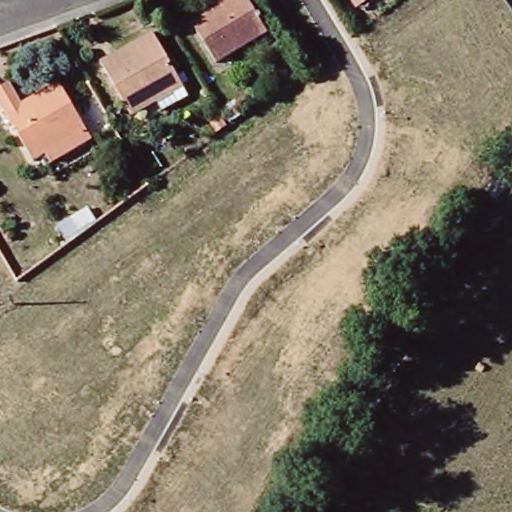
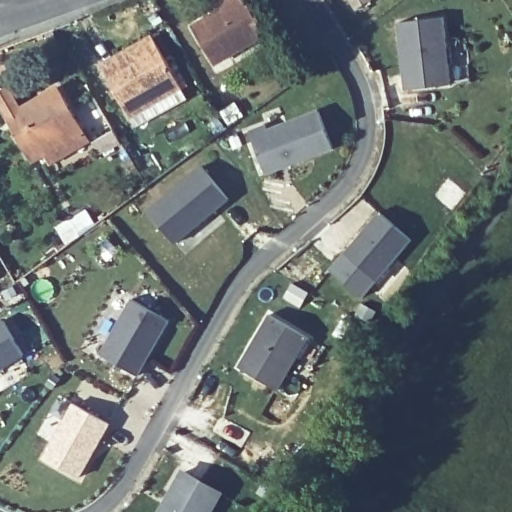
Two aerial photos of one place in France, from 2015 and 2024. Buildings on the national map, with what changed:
unchanged [(219,66),(192,26),(221,10),(216,0),(249,0),(269,32),(219,66)]
unchanged [(355,0),(369,0),(359,6),(355,0)]
new [(400,22),(445,18),(452,84),(408,89),(400,22)]
unchanged [(131,115),(100,65),(148,35),(187,94),(161,112),(154,101),(131,115)]
unchanged [(11,84),(25,105),(56,85),(87,127),(34,162),(0,110),(0,91),(11,84)]
new [(250,129),(267,123),(269,129),(319,109),(334,150),(268,174),(250,129)]
new [(149,211),(202,166),(230,198),(175,241),(149,211)]
new [(382,212),(414,240),(380,281),(347,254),(382,212)]
new [(120,317),(107,311),(116,294),(131,302),(168,324),(139,375),(100,353),(120,317)]
new [(271,314),(310,336),(278,389),(240,366),(271,314)]
new [(0,371),(0,320),(2,319),(25,356),(0,371)]
new [(77,404),(112,424),(81,478),(46,458),(77,404)]
new [(221,492),(209,512),(163,512),(184,472),(221,492)]

